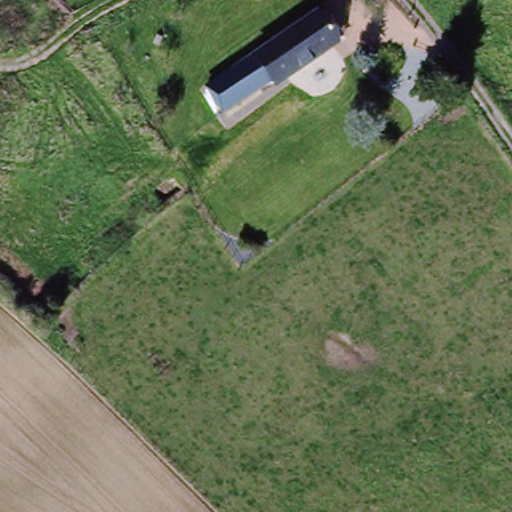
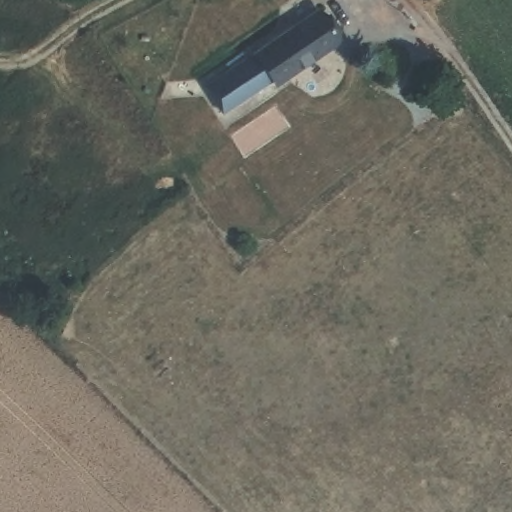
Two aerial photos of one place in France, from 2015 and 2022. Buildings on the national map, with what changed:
unchanged [(274,87),(272,83),(224,116),(207,90),(318,14),(339,43),(274,87)]

